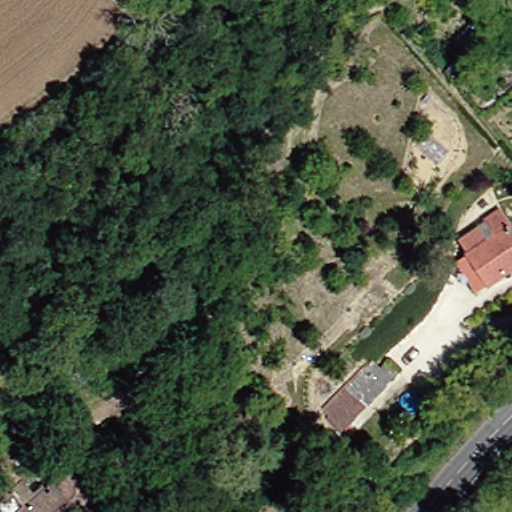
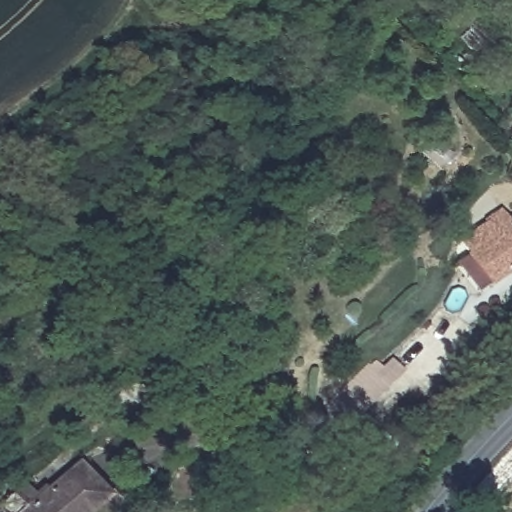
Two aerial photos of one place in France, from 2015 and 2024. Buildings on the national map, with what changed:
unchanged [(482,285),(453,245),(494,219),(512,241),(512,266),(482,285)]
unchanged [(325,411),(368,366),(376,375),(388,363),(397,373),(343,428),(325,411)]
unchanged [(320,443),(334,430),(364,460),(350,473),(320,443)]
unchanged [(11,496),(22,508),(73,462),(101,495),(83,512),(9,512),(2,505),(11,496)]

